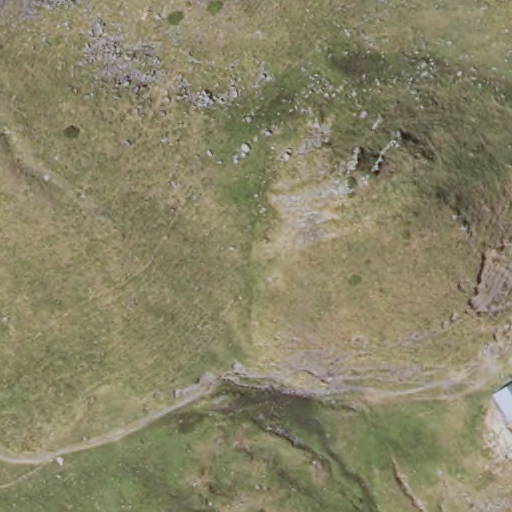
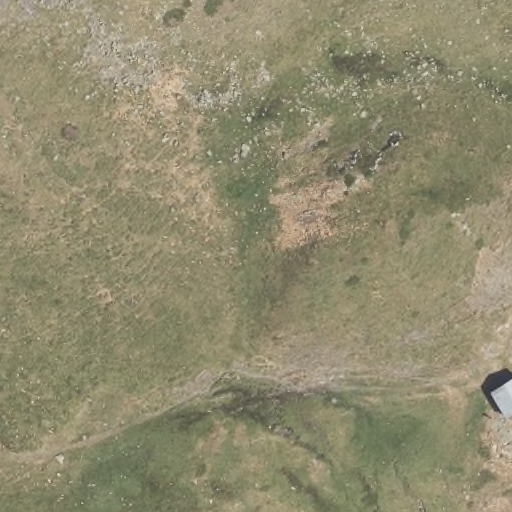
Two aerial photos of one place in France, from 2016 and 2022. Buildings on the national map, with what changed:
unchanged [(512,372),(512,409),(502,414),(489,392),(512,372)]

